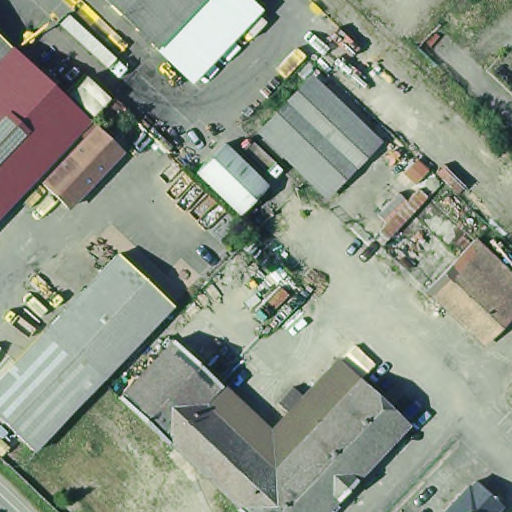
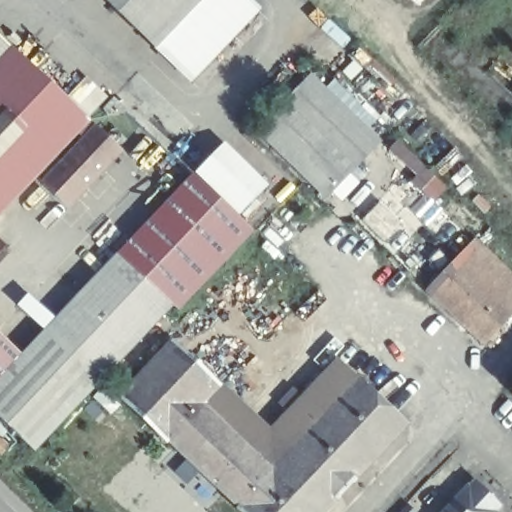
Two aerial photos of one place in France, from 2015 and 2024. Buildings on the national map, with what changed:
unchanged [(204,0),(159,49),(105,0),(204,0)]
unchanged [(249,0),(262,11),(196,82),(159,49),(204,0),(249,0)]
unchanged [(88,117),(0,212),(0,61),(13,47),(88,117)]
unchanged [(86,74),(108,94),(88,115),(66,95),(86,74)]
unchanged [(280,111),(301,90),(367,155),(346,176),(280,111)]
unchanged [(325,197),(259,132),(280,111),(346,176),(325,197)]
unchanged [(96,131),(121,154),(68,210),(44,187),(96,131)]
unchanged [(267,184),(238,215),(192,173),(224,140),(267,184)]
new [(238,215),(252,231),(181,308),(174,301),(119,250),(192,173),(238,215)]
unchanged [(512,273),(512,318),(485,345),(429,291),(479,240),(512,273)]
unchanged [(119,250),(174,301),(105,375),(51,325),(119,250)]
unchanged [(24,355),(51,325),(105,375),(39,455),(0,416),(0,383),(24,355)]
new [(0,383),(0,333),(24,355),(0,383)]
unchanged [(326,512),(244,512),(241,509),(243,506),(173,440),(170,442),(123,397),(177,340),(224,386),(245,406),(273,433),(342,357),(364,378),(410,422),(326,512)]
unchanged [(512,397),(512,401),(510,399),(512,397)]
unchanged [(469,484),(472,486),(478,480),(504,505),(499,510),(499,512),(441,512),(469,484)]

